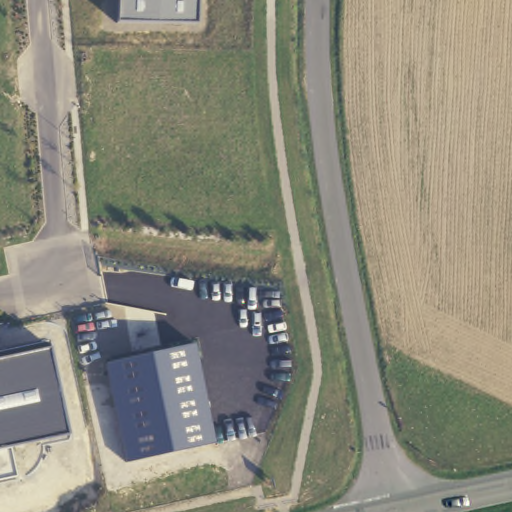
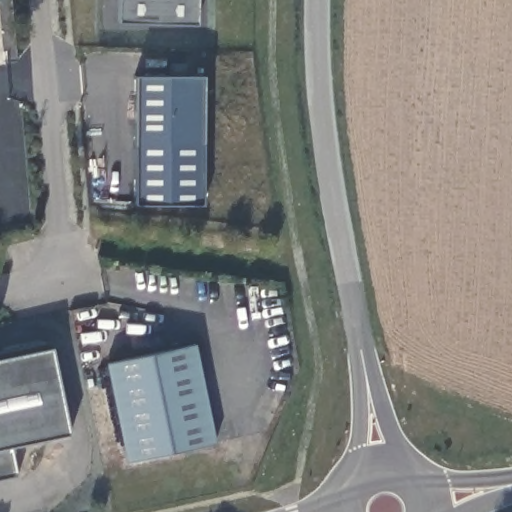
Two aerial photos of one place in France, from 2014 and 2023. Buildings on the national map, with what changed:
unchanged [(118,0),(197,0),(196,25),(117,22),(118,0)]
new [(203,144),(135,144),(135,75),(170,75),(170,62),(185,63),(186,75),(203,75),(203,144)]
new [(203,144),(203,204),(136,205),(135,144),(203,144)]
unchanged [(105,362),(196,344),(218,444),(128,463),(105,362)]
unchanged [(19,478),(0,482),(0,356),(50,346),(70,434),(14,445),(19,478)]

